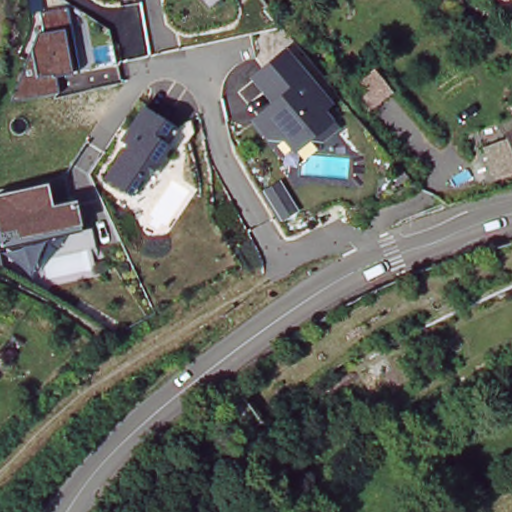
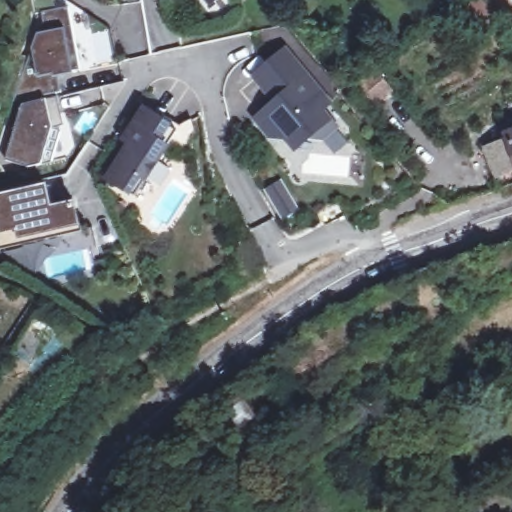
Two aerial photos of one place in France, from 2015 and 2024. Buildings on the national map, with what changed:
unchanged [(145,1),(145,0),(155,0),(145,1)]
unchanged [(207,7),(203,0),(217,0),(207,7)]
unchanged [(266,0),(275,0),(270,5),(266,0)]
unchanged [(70,6),(80,69),(55,74),(59,92),(15,99),(37,34),(45,32),(42,12),(70,6)]
unchanged [(336,106),(329,115),(340,128),(322,142),(311,137),(295,150),(287,140),(267,140),(255,122),(272,101),(253,76),(292,52),(336,106)]
unchanged [(376,68),(392,93),(367,112),(350,89),(376,68)]
new [(52,128),(40,165),(28,167),(7,160),(22,105),(45,100),(57,97),(63,125),(52,128)]
unchanged [(182,133),(174,147),(149,184),(142,182),(132,197),(107,183),(128,146),(122,141),(145,108),(182,133)]
unchanged [(485,148),(507,140),(505,134),(512,132),(512,169),(495,175),(485,148)]
unchanged [(279,183),(294,209),(281,219),(265,191),(279,183)]
unchanged [(52,207),(75,203),(80,233),(4,248),(0,229),(0,196),(45,185),(52,207)]
unchanged [(240,393),(259,417),(260,420),(237,439),(220,415),(219,412),(215,408),(240,393)]

